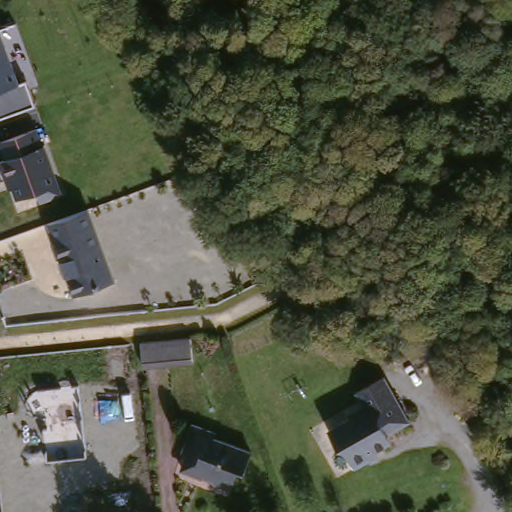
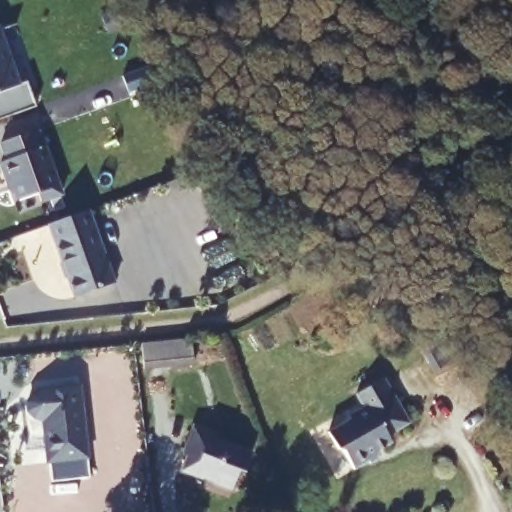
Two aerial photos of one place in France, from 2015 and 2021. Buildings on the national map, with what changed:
unchanged [(20,84),(26,81),(35,106),(0,119),(0,27),(20,84)]
unchanged [(41,131),(67,192),(44,200),(40,191),(19,199),(2,163),(11,160),(3,144),(41,131)]
unchanged [(49,223),(89,209),(115,281),(73,296),(49,223)]
unchanged [(190,364),(142,368),(140,344),(189,339),(190,364)]
unchanged [(382,378),(407,422),(385,435),(388,442),(377,448),(373,459),(366,462),(365,460),(350,468),(341,451),(335,449),(325,431),(348,419),(346,415),(355,410),(361,407),(354,393),(382,378)]
new [(90,458),(45,464),(42,420),(35,419),(26,411),(26,401),(31,392),(40,388),(82,384),(90,458)]
unchanged [(190,456),(181,452),(193,423),(215,432),(214,438),(254,453),(245,473),(239,470),(230,490),(182,469),(190,456)]

